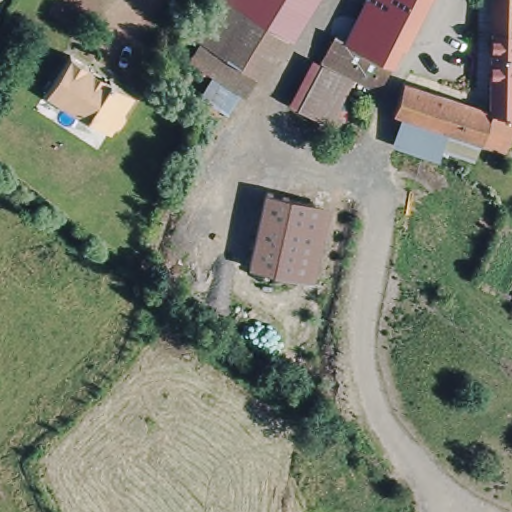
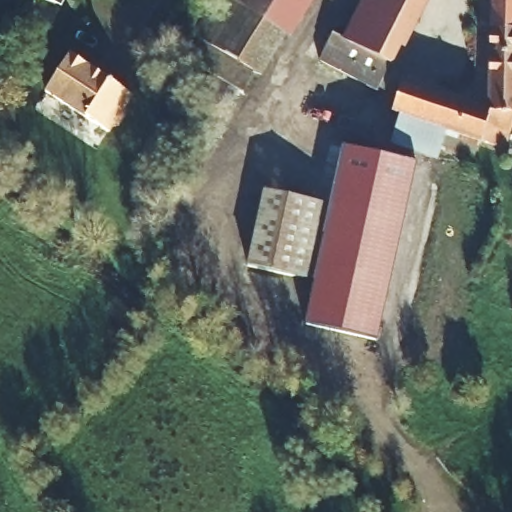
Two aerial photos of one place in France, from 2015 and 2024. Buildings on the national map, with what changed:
unchanged [(282,38),(235,8),(226,2),(227,0),(308,0),(294,21),(282,38)]
unchanged [(342,15),(362,24),(374,0),(430,0),(388,81),(382,94),(376,92),(353,80),(319,62),(322,56),(327,46),(342,15)]
unchanged [(502,143),(461,130),(446,126),(440,143),(412,135),(390,128),(395,108),(388,106),(395,82),(481,107),(489,0),(512,0),(512,118),(510,123),(502,143)]
unchanged [(243,95),(188,56),(226,2),(235,8),(282,38),(243,95)]
unchanged [(119,120),(125,123),(115,137),(102,139),(42,96),(68,59),(130,103),(119,120)]
unchanged [(353,80),(330,127),(296,110),(319,62),(353,80)]
new [(332,205),(342,148),(416,164),(377,341),(305,323),(315,281),(332,205)]
unchanged [(332,205),(315,281),(249,264),(265,190),(332,205)]

